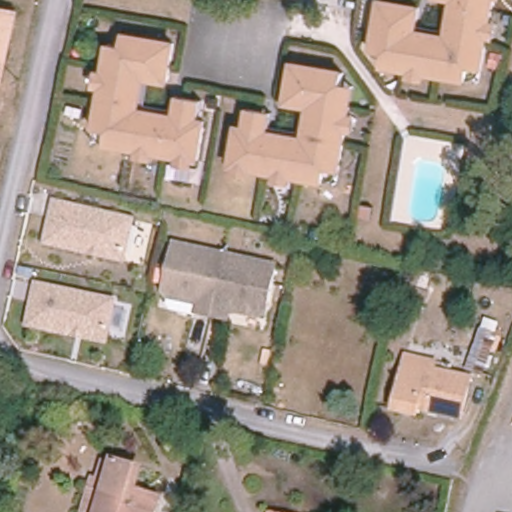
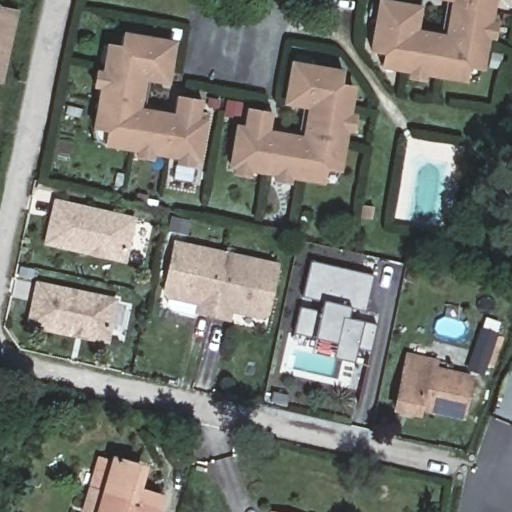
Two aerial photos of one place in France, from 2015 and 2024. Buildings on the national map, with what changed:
unchanged [(483,69),(468,66),(466,81),(407,70),(410,56),(373,50),(382,1),(422,8),(417,31),(448,36),(454,2),(443,0),(495,0),(483,69)]
unchanged [(3,81),(0,80),(0,9),(18,12),(3,81)]
unchanged [(135,109),(172,116),(176,98),(197,102),(194,120),(202,121),(195,162),(103,145),(106,130),(91,127),(100,74),(101,69),(116,71),(121,35),(171,43),(164,82),(141,79),(135,109)]
unchanged [(350,110),(340,170),(325,167),(322,181),(233,165),(240,127),(245,127),(248,108),(275,113),(272,132),(305,139),(311,107),(287,103),(295,62),(345,72),(339,109),(350,110)]
unchanged [(125,262),(43,242),(53,198),(135,216),(125,262)]
unchanged [(194,311),(197,298),(192,297),(186,300),(165,296),(161,290),(172,244),(222,255),(208,315),(194,311)]
unchanged [(254,262),(271,266),(261,312),(255,316),(243,313),(234,311),(230,305),(226,305),(223,318),(208,315),(222,255),(254,262)]
new [(293,332),(300,304),(320,310),(322,301),(302,295),(311,259),(374,273),(363,320),(377,322),(371,350),(357,346),(354,362),(310,352),(313,337),(293,332)]
unchanged [(107,343),(26,326),(35,281),(116,298),(107,343)]
unchanged [(483,365),(480,373),(467,368),(480,331),(493,335),(489,348),(498,351),(492,369),(483,365)]
unchanged [(467,377),(458,417),(416,407),(414,414),(393,409),(403,363),(467,377)]
unchanged [(138,496),(161,504),(158,512),(86,512),(96,483),(99,485),(105,465),(116,468),(116,466),(145,475),(138,496)]

